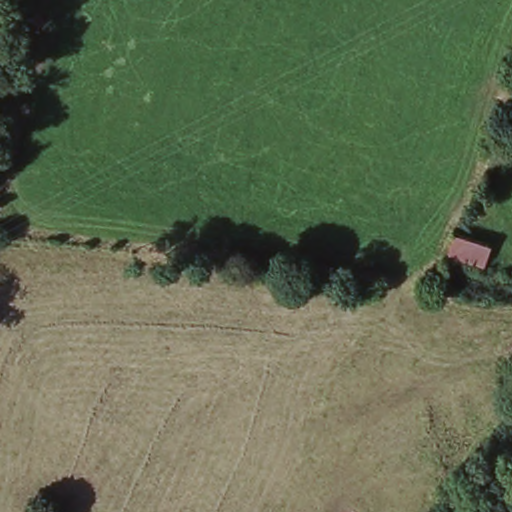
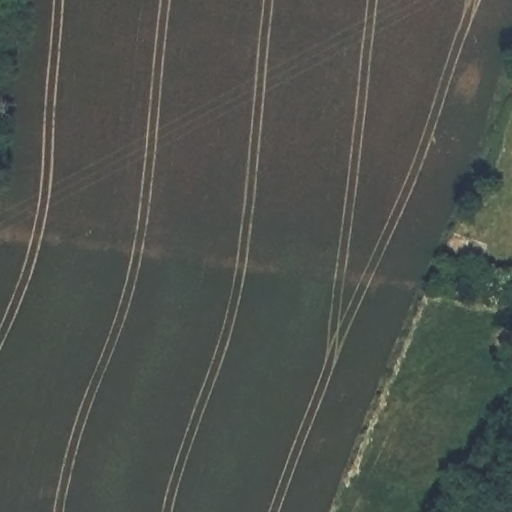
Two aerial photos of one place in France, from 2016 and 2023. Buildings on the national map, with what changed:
unchanged [(493,262),(486,281),(450,269),(456,251),(493,262)]

